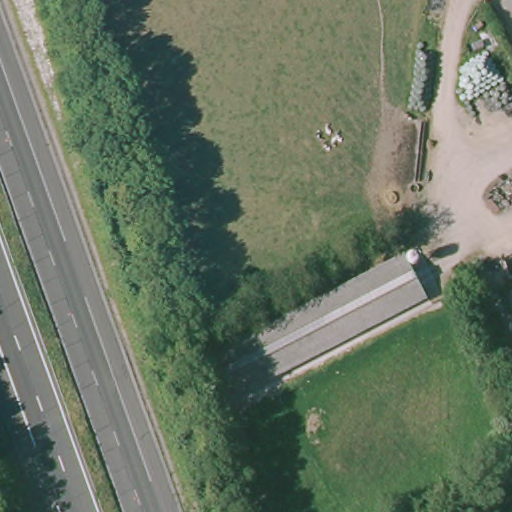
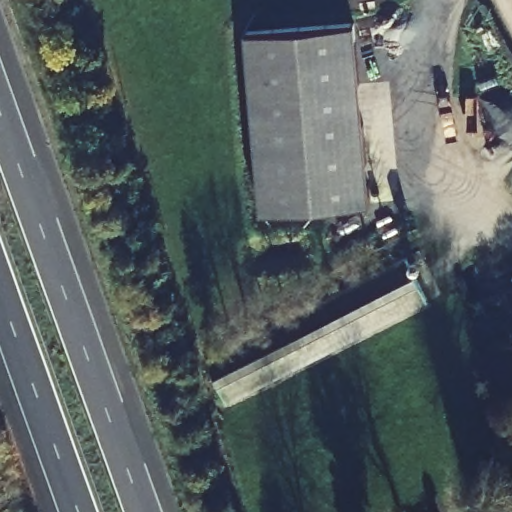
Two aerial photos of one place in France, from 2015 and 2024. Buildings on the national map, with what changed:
new [(353,24),(366,207),(255,215),(242,32),(353,24)]
unchanged [(207,364),(404,260),(427,303),(222,407),(207,364)]

